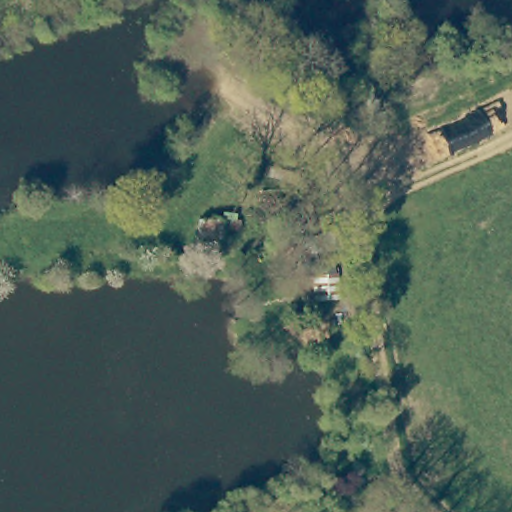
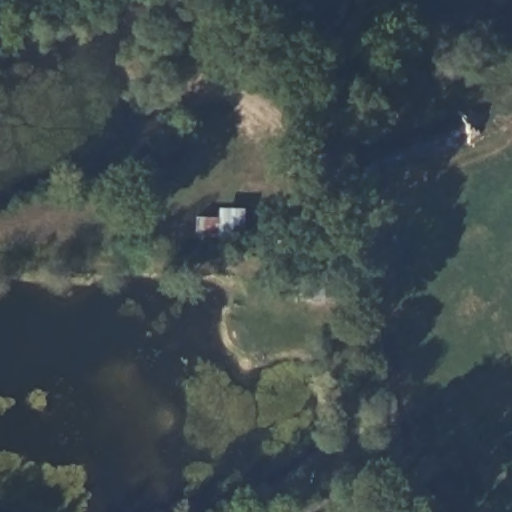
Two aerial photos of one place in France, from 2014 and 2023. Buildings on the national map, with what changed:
unchanged [(197,234),(197,219),(238,218),(238,228),(219,228),(219,234),(197,234)]
unchanged [(313,298),(312,288),(296,289),(293,255),(310,253),(313,274),(336,270),(339,295),(313,298)]

